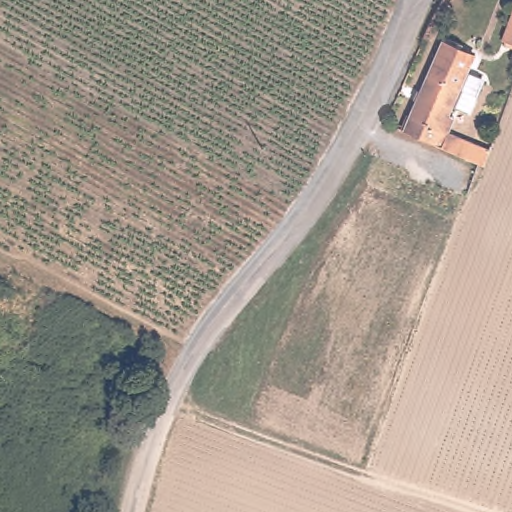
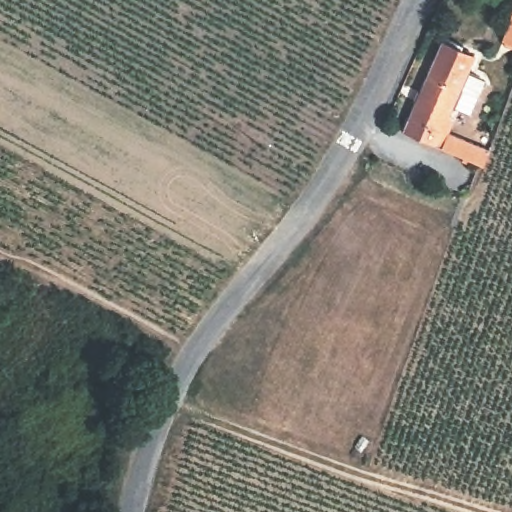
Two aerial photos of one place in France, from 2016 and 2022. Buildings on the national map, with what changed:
unchanged [(512,23),(512,42),(506,39),(512,23)]
unchanged [(446,38),(477,52),(445,127),(450,129),(444,144),(406,127),(446,38)]
unchanged [(460,131),(479,140),(472,154),(453,145),(460,131)]

